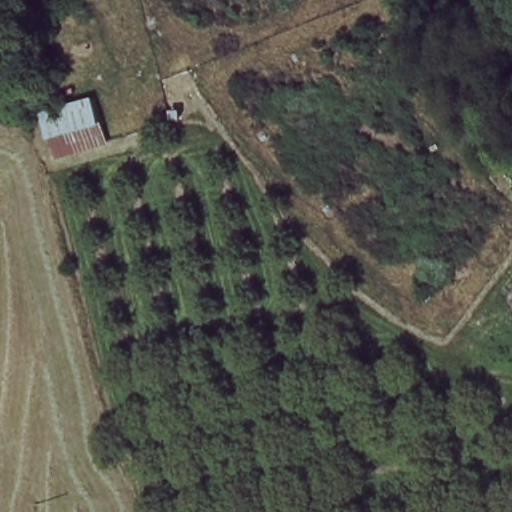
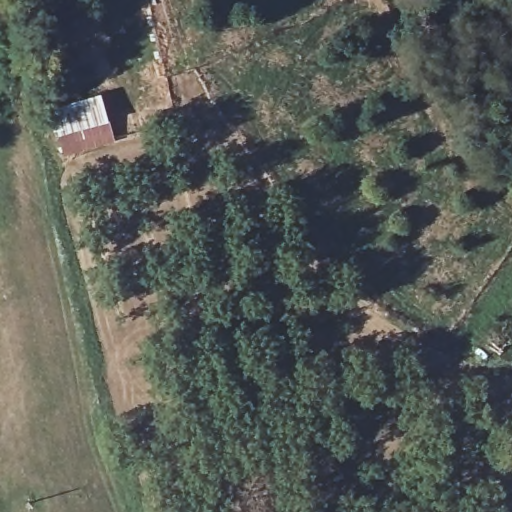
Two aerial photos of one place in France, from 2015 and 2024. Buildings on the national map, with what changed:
unchanged [(47,109),(98,96),(109,126),(55,137),(47,109)]

